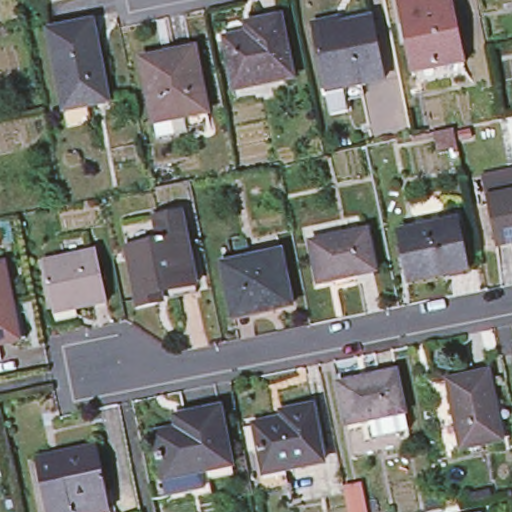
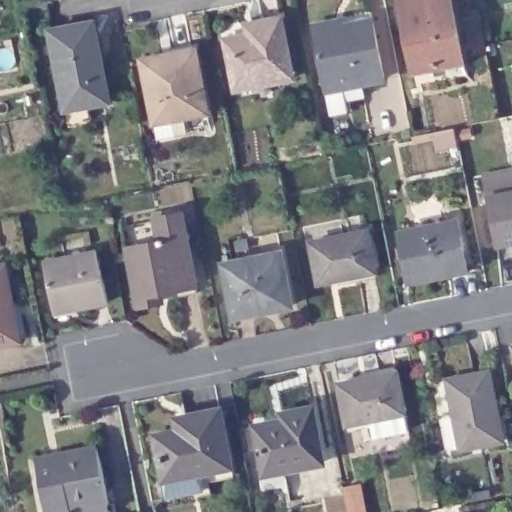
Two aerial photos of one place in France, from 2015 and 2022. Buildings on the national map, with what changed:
unchanged [(49,2),(49,0),(61,0),(49,2)]
unchanged [(458,62),(409,72),(395,0),(446,0),(458,62)]
unchanged [(323,96),(321,83),(308,18),(334,13),(335,19),(367,12),(378,72),(354,77),(357,89),(323,96)]
unchanged [(287,76),(230,87),(220,36),(255,29),(253,19),(275,15),(287,76)]
unchanged [(58,101),(45,28),(89,20),(104,100),(81,104),(59,107),(58,101)]
unchanged [(182,123),(152,130),(149,114),(137,52),(191,42),(202,105),(179,109),(182,121),(182,123)]
unchanged [(481,195),(476,173),(512,166),(512,188),(481,195)]
unchanged [(491,244),(481,195),(512,188),(512,240),(491,244)]
unchanged [(464,269),(440,273),(439,268),(402,275),(394,230),(454,218),(464,269)]
unchanged [(190,283),(152,291),(155,302),(133,307),(123,260),(146,255),(147,263),(159,262),(152,230),(178,225),(190,283)]
unchanged [(370,265),(313,276),(306,236),(362,225),(370,265)]
unchanged [(101,298),(48,309),(37,258),(91,247),(101,298)]
unchanged [(290,300),(270,303),(269,300),(252,303),(252,307),(232,312),(222,258),(280,247),(290,300)]
unchanged [(0,338),(0,263),(14,335),(0,338)]
unchanged [(511,341),(512,341),(512,346),(511,341)]
unchanged [(365,429),(361,412),(337,417),(329,376),(387,363),(395,405),(399,422),(365,429)]
unchanged [(498,437),(456,446),(442,376),(485,368),(498,437)]
unchanged [(317,459),(259,471),(249,422),(277,417),(276,410),(306,403),(317,459)]
unchanged [(227,463),(159,477),(150,432),(172,427),(169,414),(215,405),(227,463)]
unchanged [(65,509),(65,512),(41,512),(32,465),(30,457),(53,452),(92,444),(102,502),(65,509)]
unchanged [(348,512),(344,488),(361,485),(366,512),(348,512)]
unchanged [(467,512),(477,510),(477,512),(467,512)]

